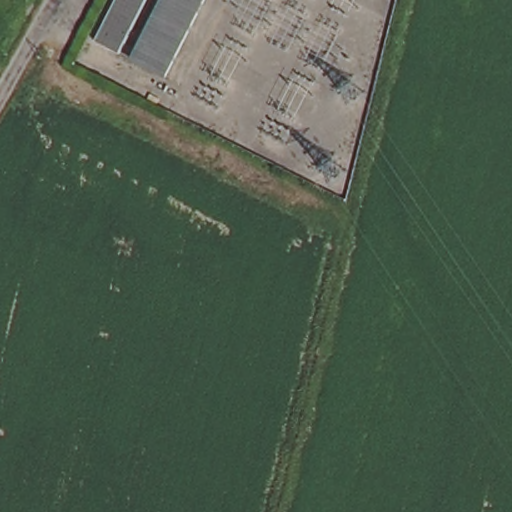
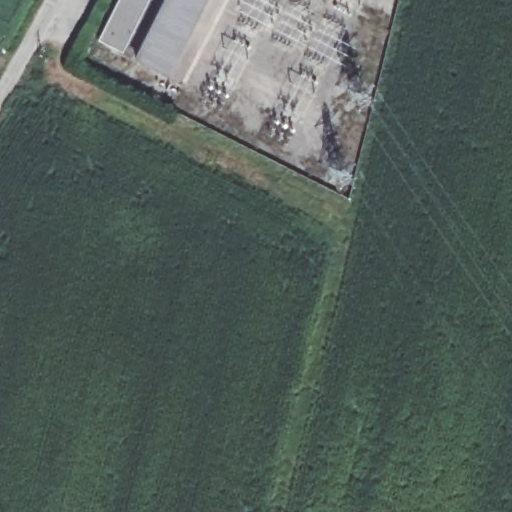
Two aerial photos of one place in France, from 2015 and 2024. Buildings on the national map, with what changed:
unchanged [(124,41),(101,30),(117,0),(145,0),(124,41)]
unchanged [(168,74),(138,57),(168,0),(206,0),(168,74)]

